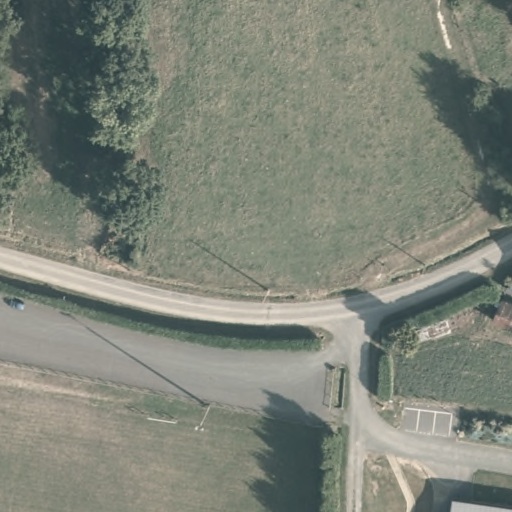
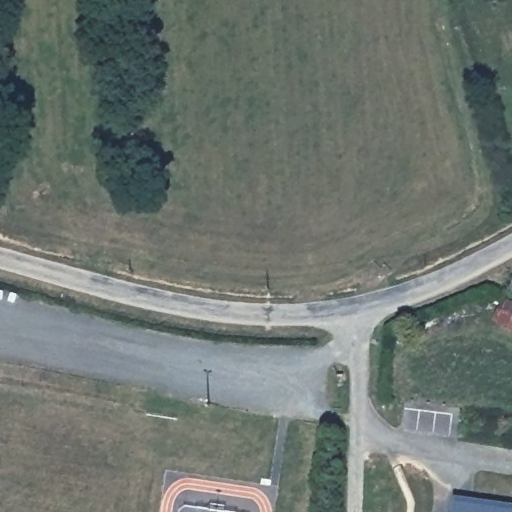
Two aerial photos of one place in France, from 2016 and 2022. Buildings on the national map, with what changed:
unchanged [(512,286),(512,290),(510,289),(512,286)]
unchanged [(512,324),(496,318),(506,297),(512,299),(512,324)]
unchanged [(512,512),(450,512),(451,498),(512,506),(512,512)]

